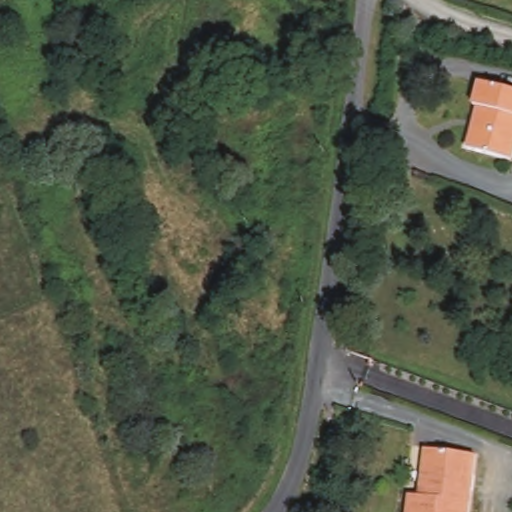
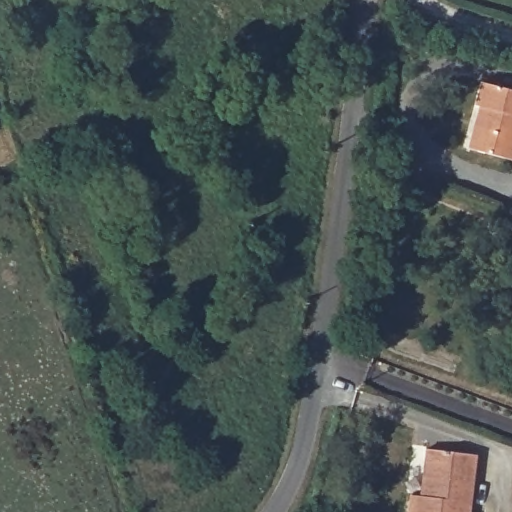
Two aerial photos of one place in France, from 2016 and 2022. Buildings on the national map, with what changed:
unchanged [(145,0),(148,0),(146,1),(145,0)]
unchanged [(473,106),(477,84),(512,92),(512,153),(510,161),(467,151),(478,108),(473,106)]
unchanged [(473,455),(465,512),(404,512),(406,495),(416,497),(418,485),(421,449),(473,455)]

